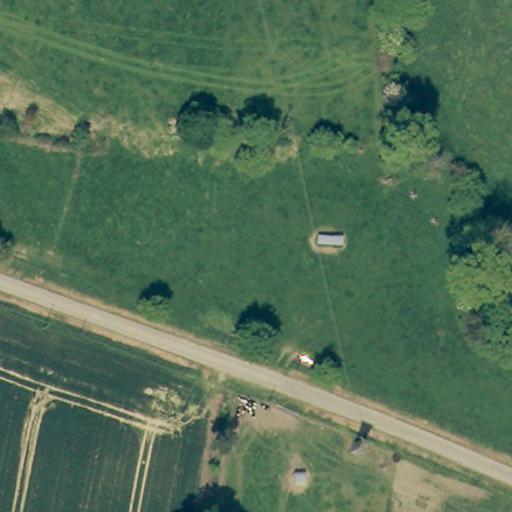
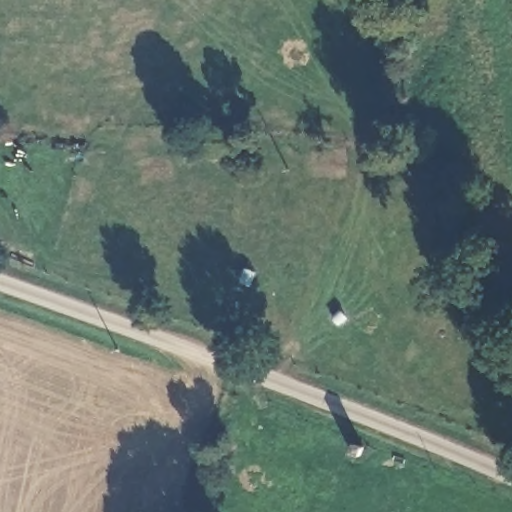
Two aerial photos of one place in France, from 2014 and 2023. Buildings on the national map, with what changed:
unchanged [(401,120),(427,121),(426,153),(400,152),(401,120)]

